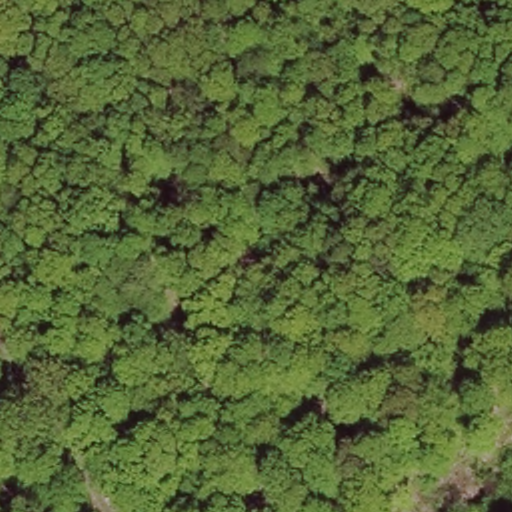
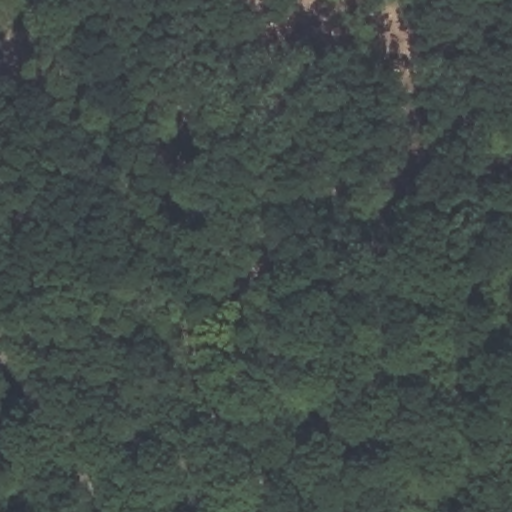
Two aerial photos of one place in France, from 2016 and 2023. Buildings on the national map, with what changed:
unchanged [(250,324),(265,342),(253,351),(239,334),(250,324)]

